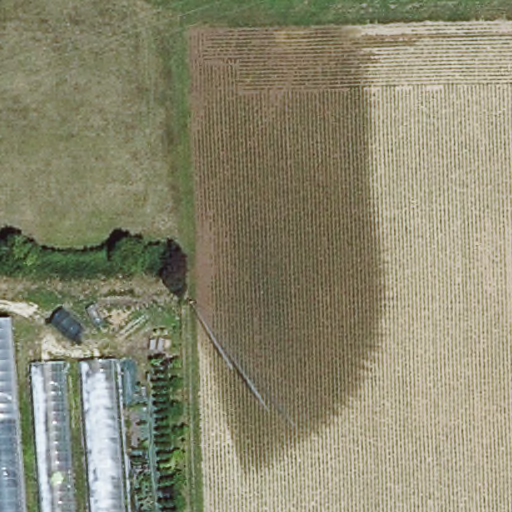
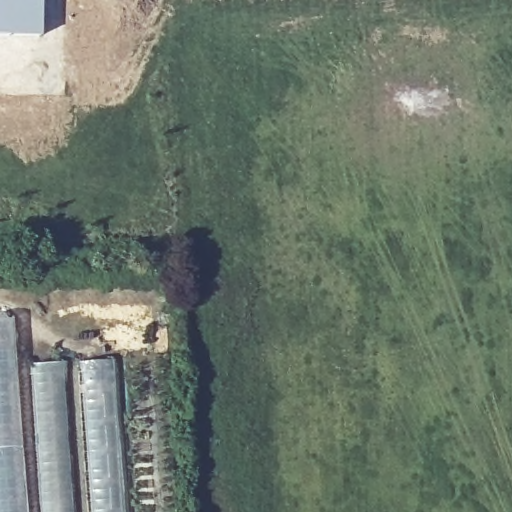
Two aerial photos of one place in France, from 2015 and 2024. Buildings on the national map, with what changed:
new [(42,35),(0,35),(0,0),(42,0),(42,35)]
unchanged [(11,318),(14,365),(113,358),(126,512),(0,512),(0,319),(11,318)]

